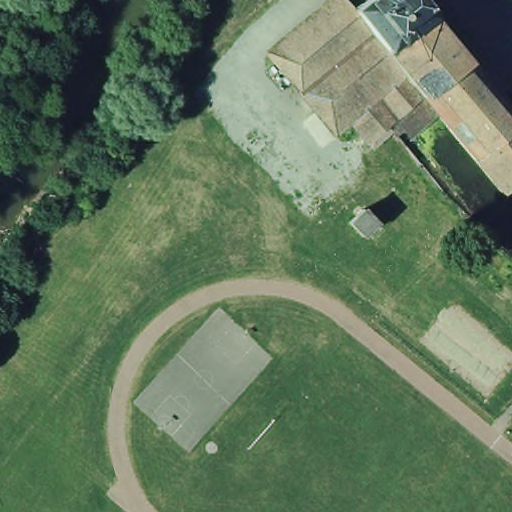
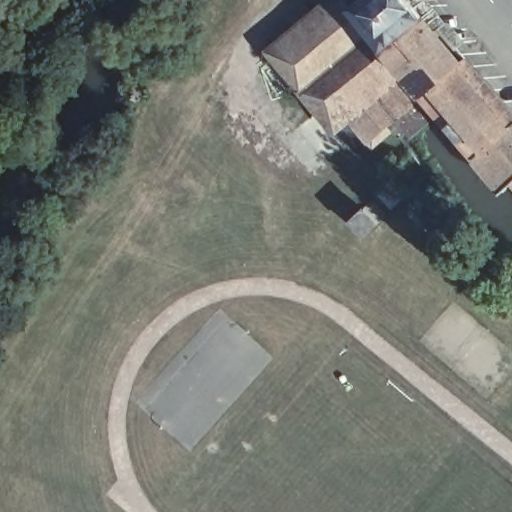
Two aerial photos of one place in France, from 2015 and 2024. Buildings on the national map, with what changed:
unchanged [(347,134),(272,57),(329,0),(351,0),(363,11),(367,8),(375,0),(425,0),(485,61),(477,69),(433,115),(414,136),(379,158),(347,134)]
unchanged [(500,199),(433,115),(477,69),(512,105),(512,188),(500,199)]
unchanged [(355,215),(363,207),(378,221),(368,230),(363,235),(350,220),(355,215)]

